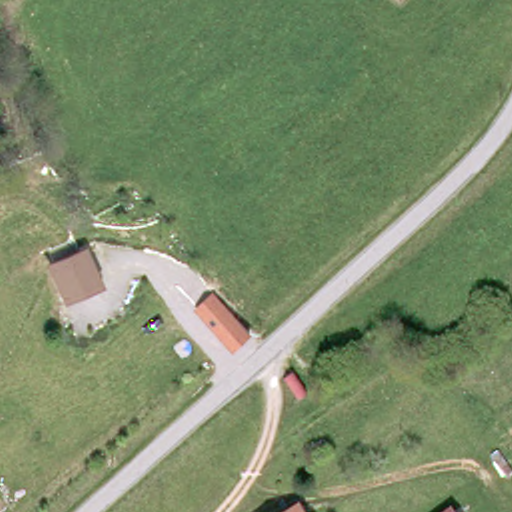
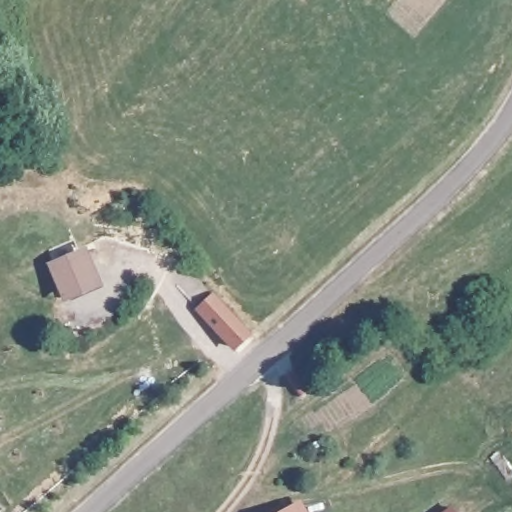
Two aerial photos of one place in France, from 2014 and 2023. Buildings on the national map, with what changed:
unchanged [(93,283),(67,297),(53,269),(80,256),(93,283)]
unchanged [(253,335),(235,351),(195,309),(213,292),(253,335)]
unchanged [(443,512),(452,505),(457,512),(443,512)]
unchanged [(296,512),(299,510),(300,512),(296,512)]

